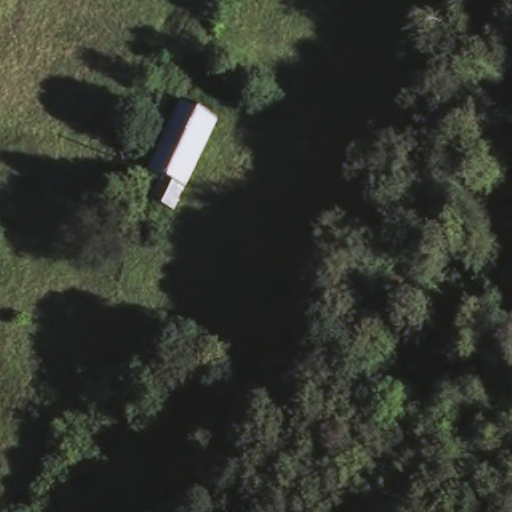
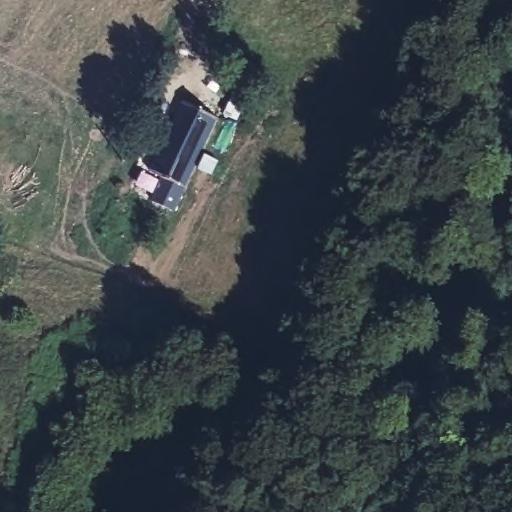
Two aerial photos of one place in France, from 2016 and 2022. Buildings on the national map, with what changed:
unchanged [(141,198),(158,155),(180,97),(221,112),(182,214),(141,198)]

